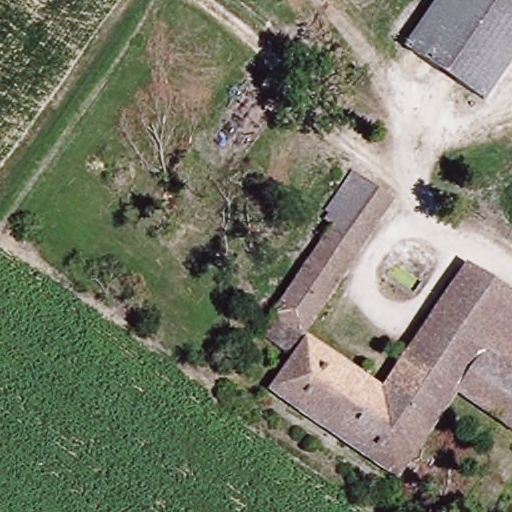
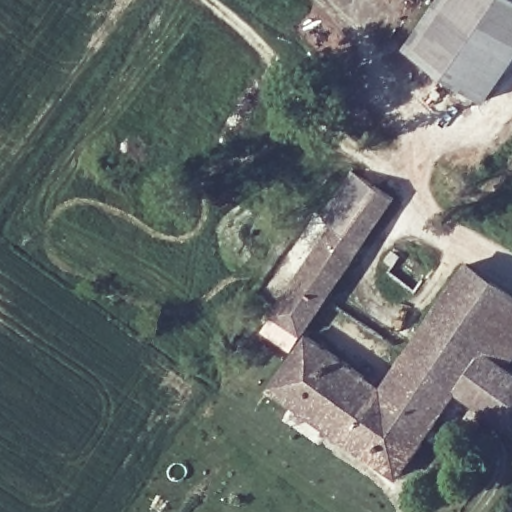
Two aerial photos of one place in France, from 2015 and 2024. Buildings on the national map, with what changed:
unchanged [(481,101),(405,46),(437,0),(512,0),(512,54),(481,101)]
unchanged [(327,223),(315,214),(352,169),(387,202),(316,306),(287,284),(327,223)]
unchanged [(403,346),(461,257),(512,292),(512,355),(507,362),(512,365),(512,421),(462,386),(403,346)]
unchanged [(250,336),(263,318),(279,294),(287,284),(316,306),(295,336),(281,357),(250,336)]
unchanged [(462,386),(405,472),(272,389),(302,342),(375,387),(403,346),(462,386)]

